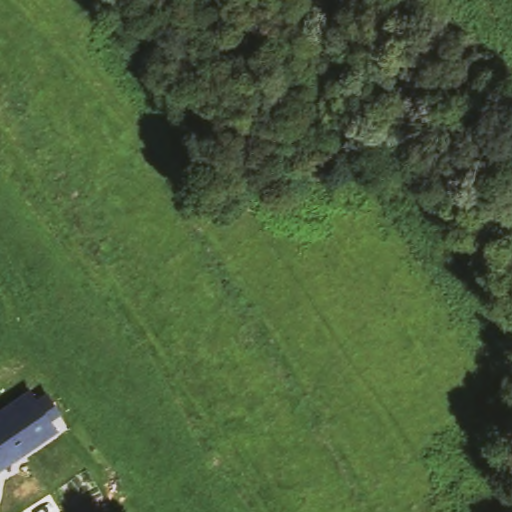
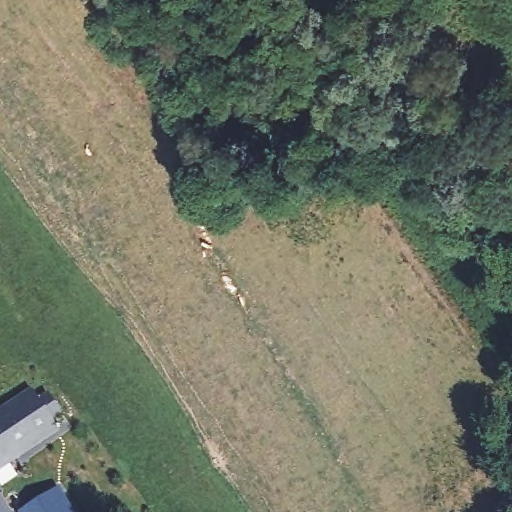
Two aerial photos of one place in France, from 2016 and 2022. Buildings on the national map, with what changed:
unchanged [(0,408),(29,388),(36,397),(44,390),(60,413),(51,420),(60,432),(0,471),(0,408)]
new [(75,512),(22,512),(60,488),(75,512)]

